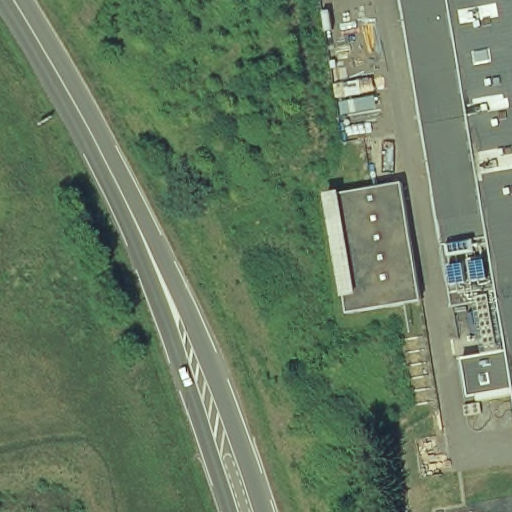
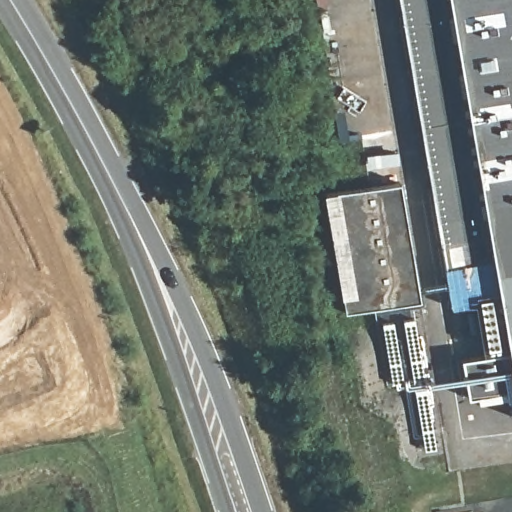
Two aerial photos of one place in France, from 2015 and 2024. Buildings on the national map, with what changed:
unchanged [(501,300),(453,306),(403,0),(512,0),(512,364),(510,352),(501,300)]
unchanged [(331,194),(409,182),(428,301),(352,315),(331,194)]
unchanged [(467,360),(510,352),(512,364),(512,397),(482,402),(480,397),(471,398),(467,360)]

